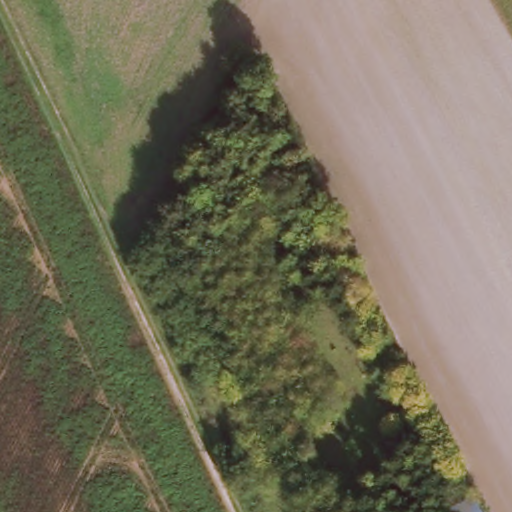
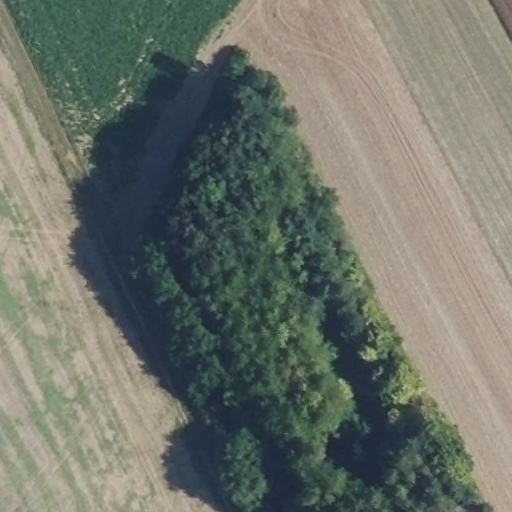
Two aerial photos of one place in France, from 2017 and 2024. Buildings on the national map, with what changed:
unchanged [(475,501),(481,512),(455,512),(475,501)]

